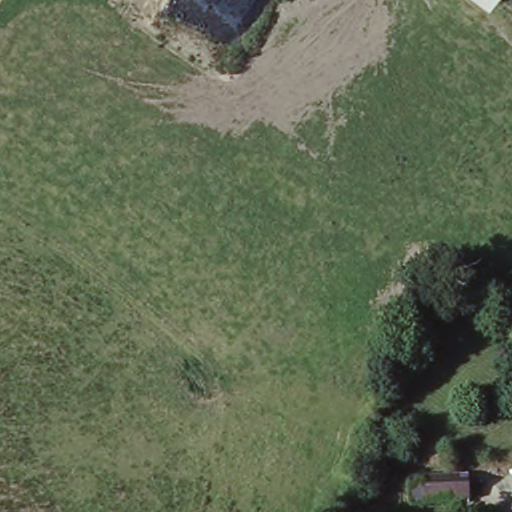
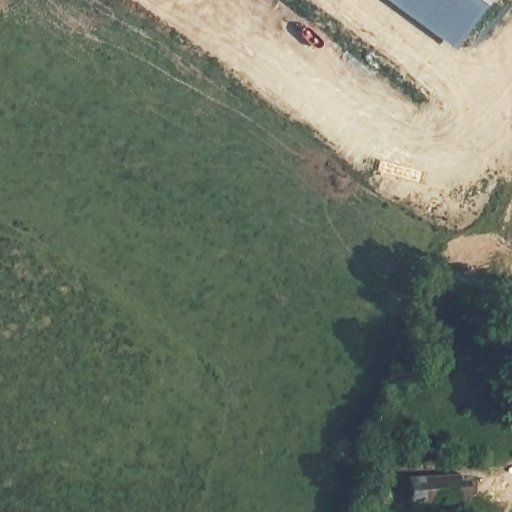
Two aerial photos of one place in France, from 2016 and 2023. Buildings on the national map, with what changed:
new [(453,47),(389,0),(474,0),(486,9),(453,47)]
unchanged [(474,0),(492,0),(486,9),(474,0)]
unchanged [(460,476),(461,501),(406,505),(402,480),(460,476)]

